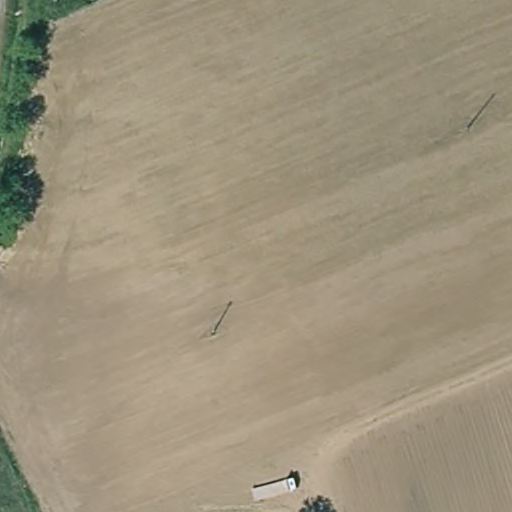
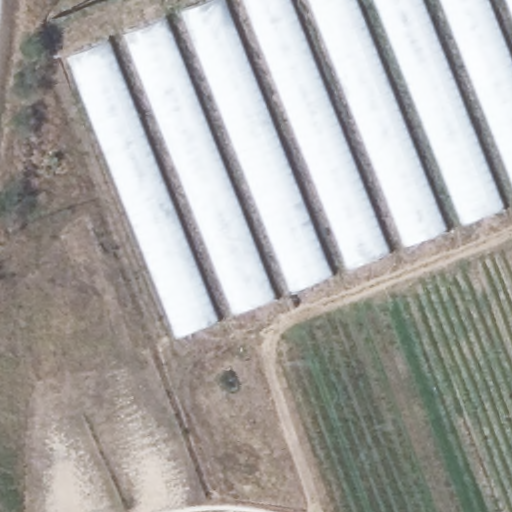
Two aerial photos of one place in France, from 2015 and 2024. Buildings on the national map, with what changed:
new [(68,56),(210,0),(512,0),(512,204),(178,337),(68,56)]

